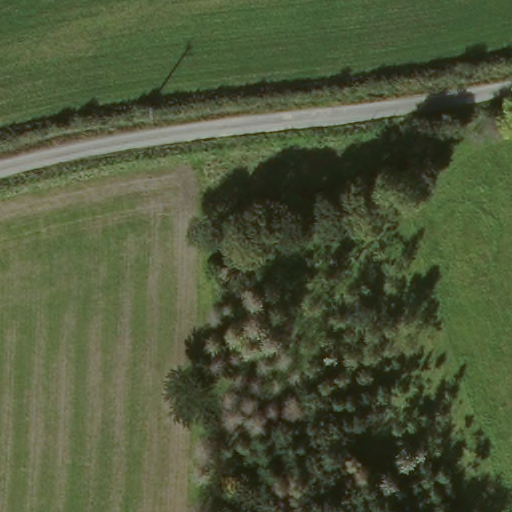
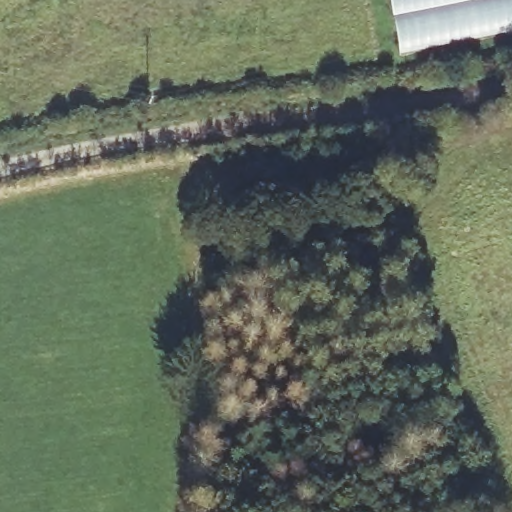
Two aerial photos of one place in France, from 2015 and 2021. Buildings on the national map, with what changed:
new [(391,0),(512,0),(512,30),(400,53),(391,0)]

